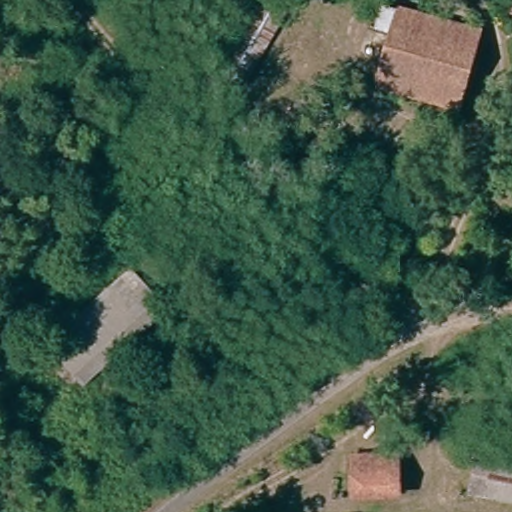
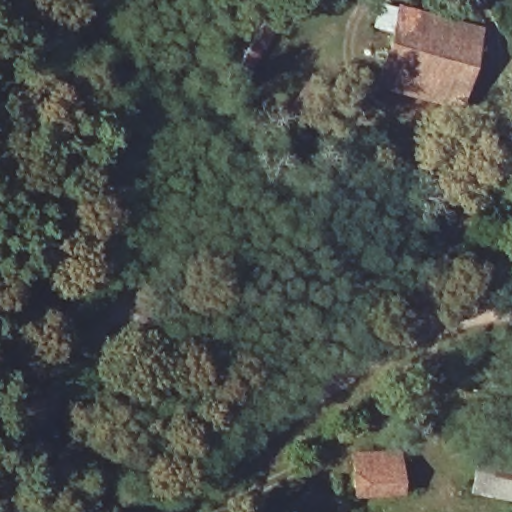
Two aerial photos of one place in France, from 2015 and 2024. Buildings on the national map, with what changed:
unchanged [(210,71),(246,0),(292,0),(241,92),(210,71)]
unchanged [(485,34),(457,107),(385,81),(416,7),(485,34)]
unchanged [(134,266),(166,312),(84,388),(47,344),(134,266)]
unchanged [(409,448),(411,490),(351,497),(350,452),(409,448)]
unchanged [(512,506),(474,502),(478,460),(512,462),(512,506)]

